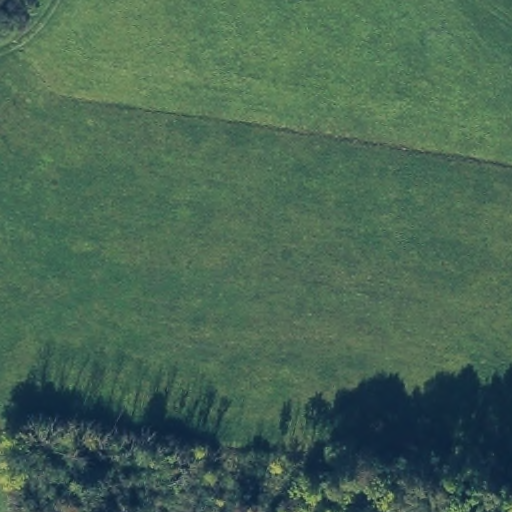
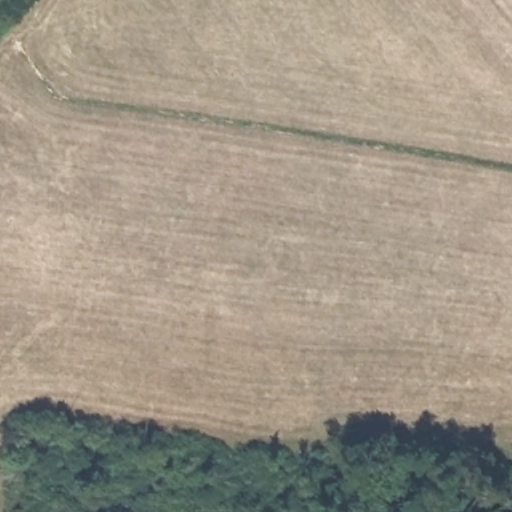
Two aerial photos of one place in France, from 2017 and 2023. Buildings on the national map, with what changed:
[]

